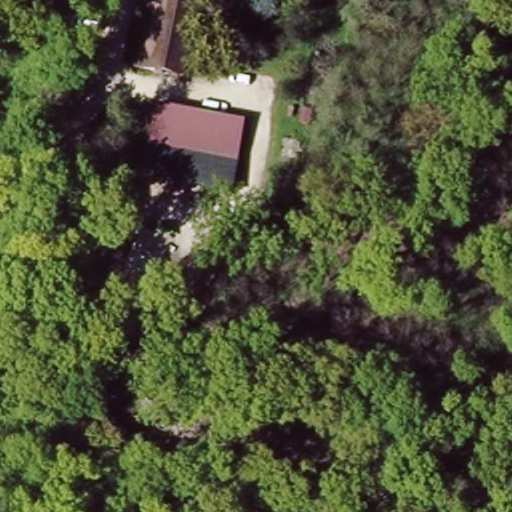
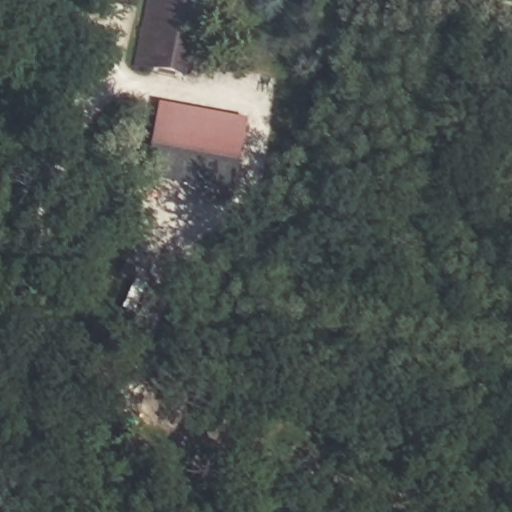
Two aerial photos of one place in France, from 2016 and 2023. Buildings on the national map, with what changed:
unchanged [(180,72),(135,61),(154,0),(203,0),(180,72)]
unchanged [(244,120),(238,162),(154,146),(160,101),(244,120)]

